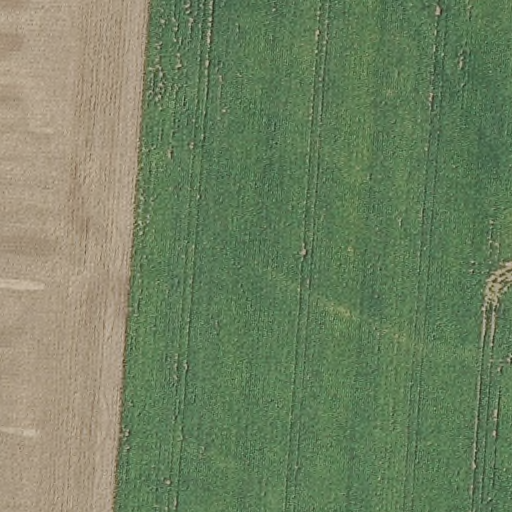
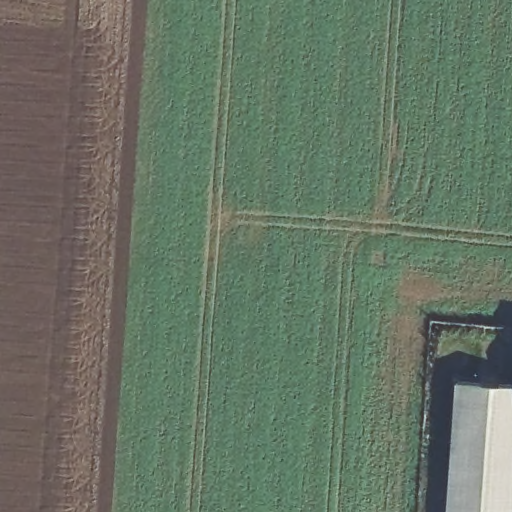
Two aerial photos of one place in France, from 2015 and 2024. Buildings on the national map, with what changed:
new [(454,380),(512,385),(512,512),(445,512),(454,380)]

